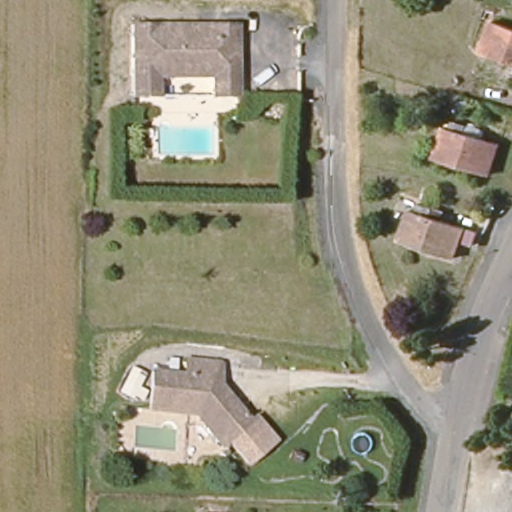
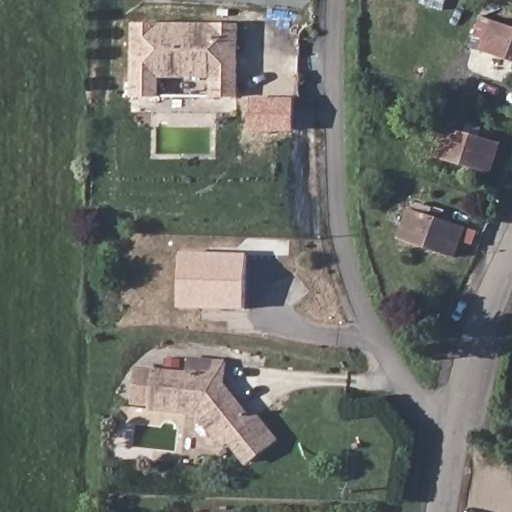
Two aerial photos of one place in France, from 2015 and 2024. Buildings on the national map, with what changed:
unchanged [(490,23),(512,30),(512,64),(480,55),(490,23)]
unchanged [(210,82),(158,81),(157,102),(132,103),(132,29),(238,31),(237,102),(210,101),(210,82)]
new [(294,98),(294,132),(250,133),(250,99),(294,98)]
unchanged [(431,159),(440,129),(446,130),(448,124),(462,128),(460,135),(495,146),(486,176),(431,159)]
unchanged [(401,244),(412,213),(418,214),(421,207),(437,212),(434,220),(466,230),(456,260),(401,244)]
new [(180,310),(181,253),(246,254),(245,312),(180,310)]
unchanged [(134,407),(136,376),(155,378),(185,381),(186,365),(222,369),(221,392),(247,424),(250,428),(231,443),(221,452),(200,422),(151,417),(152,406),(134,407)]
new [(250,428),(247,424),(257,414),(277,441),(246,466),(231,443),(250,428)]
demolished [(182,497),(214,499),(213,512),(181,512),(182,497)]

